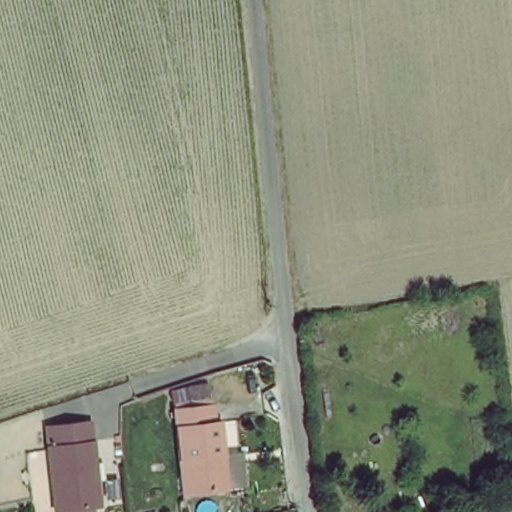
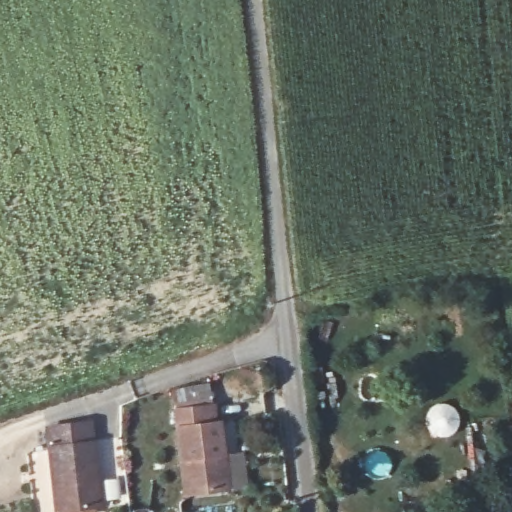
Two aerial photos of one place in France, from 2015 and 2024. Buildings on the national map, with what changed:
unchanged [(221,487),(184,490),(178,409),(212,406),(214,425),(221,425),(223,454),(225,487),(221,487)]
unchanged [(92,420),(96,505),(56,507),(50,423),(92,420)]

